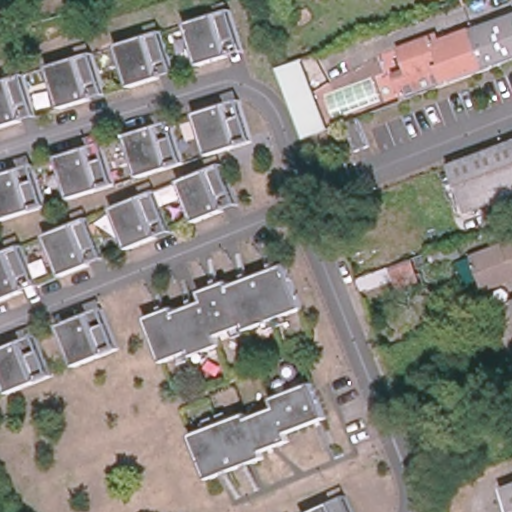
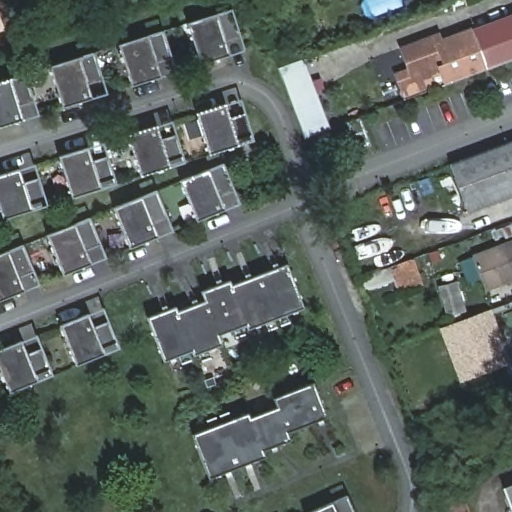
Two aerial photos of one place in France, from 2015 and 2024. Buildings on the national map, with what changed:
unchanged [(240,37),(225,42),(229,56),(200,65),(187,24),(232,10),(240,37)]
unchanged [(392,75),(405,70),(397,49),(433,35),(436,44),(512,15),(512,59),(401,100),(392,75)]
unchanged [(172,59),(156,64),(161,77),(131,87),(118,45),(163,31),(172,59)]
unchanged [(103,80),(88,85),(92,100),(63,109),(50,67),(94,53),(103,80)]
unchanged [(305,140),(280,67),(304,60),(333,132),(305,140)]
unchanged [(34,102),(19,107),(23,121),(0,128),(0,83),(26,75),(34,102)]
unchanged [(254,136),(209,150),(196,109),(225,100),(230,114),(245,109),(254,136)]
unchanged [(372,145),(358,150),(347,122),(361,117),(372,145)]
unchanged [(185,157),(141,171),(127,130),(157,121),(161,135),(177,130),(185,157)]
unchanged [(450,164),(512,141),(512,197),(468,213),(450,164)]
unchanged [(117,179),(72,194),(59,152),(88,142),(93,156),(108,152),(117,179)]
unchanged [(234,190),(219,196),(224,210),(196,221),(180,181),(223,164),(234,190)]
unchanged [(48,201),(3,215),(0,204),(0,171),(19,165),(24,179),(39,174),(48,201)]
unchanged [(167,217),(152,224),(158,237),(129,249),(113,209),(156,191),(167,217)]
unchanged [(100,245),(85,250),(91,264),(62,276),(46,235),(90,218),(100,245)]
unchanged [(473,257),(512,243),(512,280),(484,290),(473,257)]
unchanged [(32,272),(17,278),(23,291),(0,301),(0,254),(22,245),(32,272)]
unchanged [(435,266),(431,255),(459,245),(463,256),(435,266)]
unchanged [(422,285),(399,292),(391,267),(413,258),(422,285)]
unchanged [(305,307),(250,328),(248,323),(219,335),(223,344),(196,355),(194,350),(165,361),(148,316),(177,305),(179,310),(206,300),(202,290),(231,280),(233,284),(288,263),(305,307)]
unchanged [(464,311),(447,315),(440,288),(457,283),(464,311)]
unchanged [(117,342),(73,360),(57,320),(85,308),(91,321),(106,315),(117,342)]
new [(511,364),(460,384),(439,328),(490,310),(511,364)]
unchanged [(50,370),(6,387),(0,371),(0,343),(10,338),(11,338),(18,335),(24,348),(39,342),(50,370)]
unchanged [(250,411),(251,415),(278,405),(274,395),(315,380),(328,415),(289,430),(292,437),(264,448),(267,455),(210,477),(193,433),(250,411)]
unchanged [(512,484),(512,512),(502,487),(512,484)]
unchanged [(344,494),(352,512),(302,512),(344,494)]

